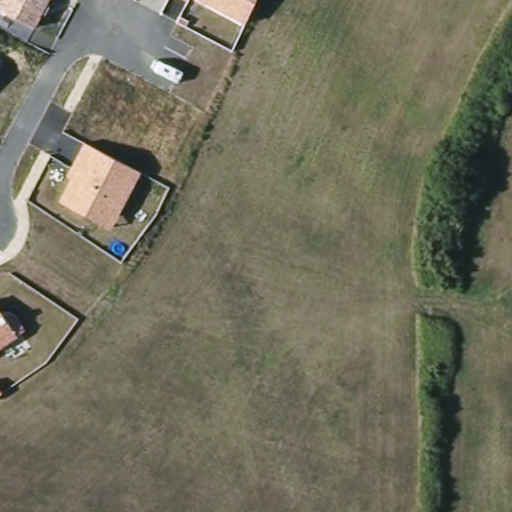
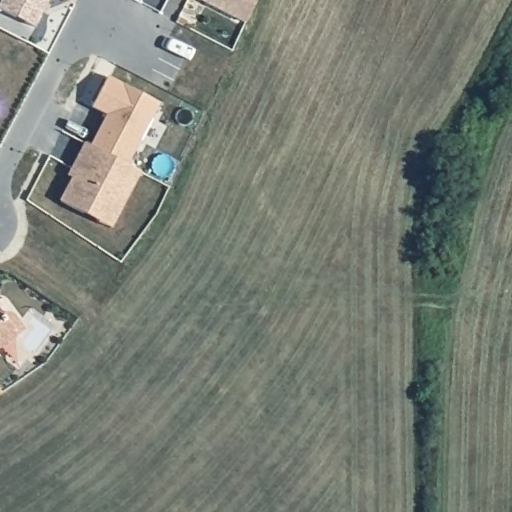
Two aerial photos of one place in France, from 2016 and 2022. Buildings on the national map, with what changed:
unchanged [(0,10),(0,0),(46,0),(33,25),(0,10)]
new [(127,165),(89,146),(105,112),(92,105),(108,76),(157,103),(127,165)]
unchanged [(71,177),(64,174),(82,143),(140,171),(111,226),(58,200),(71,177)]
unchanged [(22,330),(0,346),(0,313),(11,313),(22,330)]

